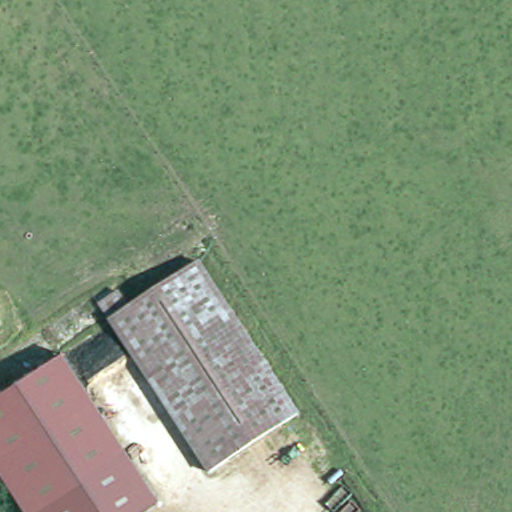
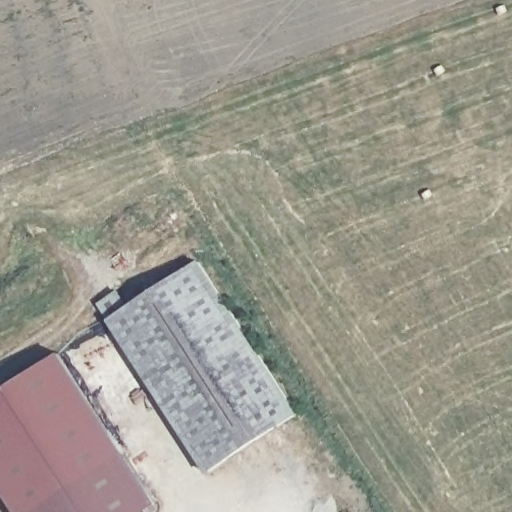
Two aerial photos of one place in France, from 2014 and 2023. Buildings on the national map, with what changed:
unchanged [(207,472),(120,329),(114,317),(205,261),(303,417),(260,441),(207,472)]
unchanged [(74,363),(130,459),(44,512),(19,512),(0,479),(0,394),(66,350),(74,363)]
unchanged [(155,503),(141,512),(44,512),(130,459),(155,503)]

